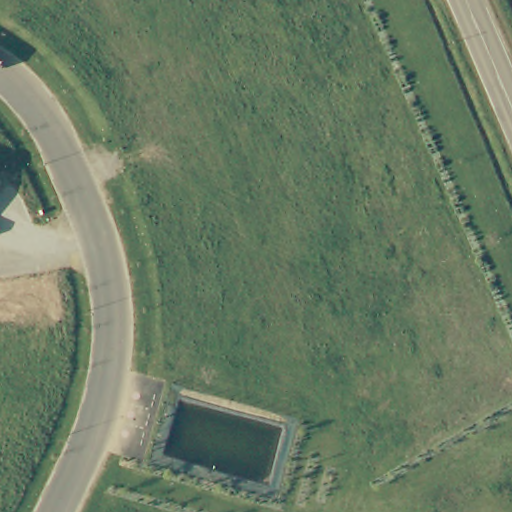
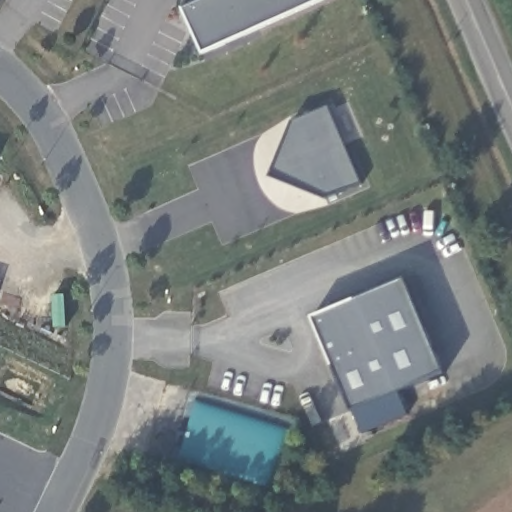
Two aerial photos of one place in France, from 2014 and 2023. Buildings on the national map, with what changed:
unchanged [(198,0),(324,0),(203,54),(182,7),(198,0)]
new [(328,107),(360,184),(327,199),(270,177),(292,122),(328,107)]
new [(312,317),(405,280),(445,374),(398,392),(406,416),(362,433),(352,412),(312,317)]

